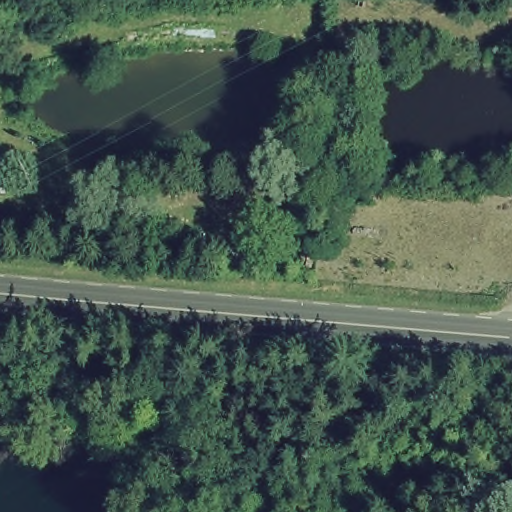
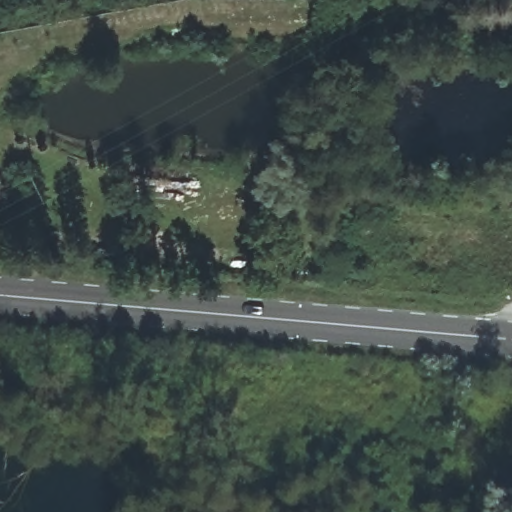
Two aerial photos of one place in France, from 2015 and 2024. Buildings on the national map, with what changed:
unchanged [(14,175),(16,200),(0,199),(0,174),(14,175)]

